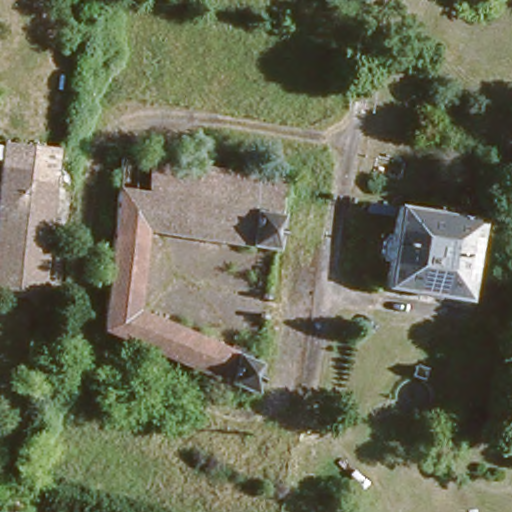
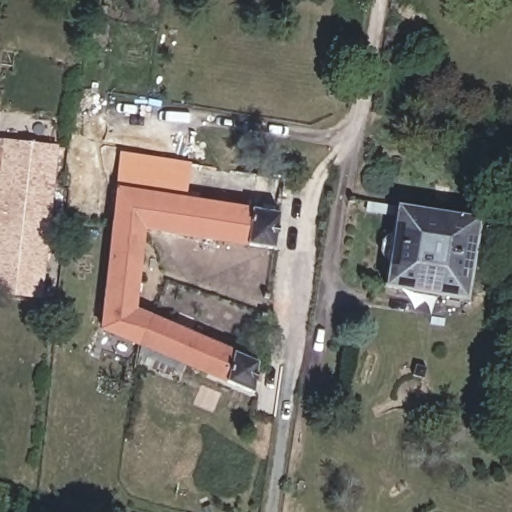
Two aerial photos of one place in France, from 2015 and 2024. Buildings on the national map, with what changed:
unchanged [(55,149),(40,296),(0,292),(0,172),(3,143),(55,149)]
unchanged [(280,174),(278,183),(269,244),(139,224),(129,305),(224,346),(227,340),(247,348),(244,355),(252,357),(247,389),(97,325),(118,150),(280,174)]
unchanged [(473,214),(460,293),(380,281),(384,255),(380,255),(376,246),(378,236),(384,230),(388,230),(392,201),(473,214)]
unchanged [(20,512),(4,512),(6,496),(21,497),(20,512)]

